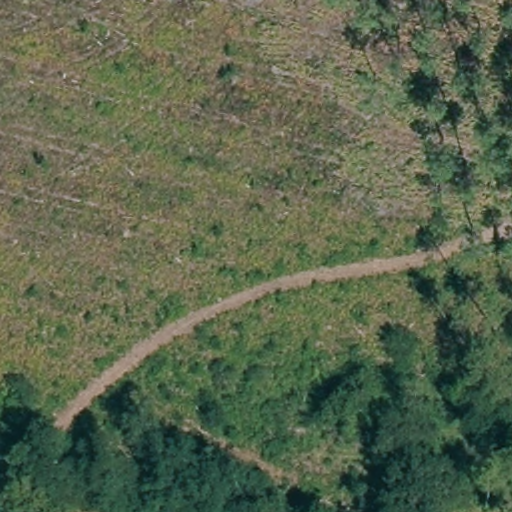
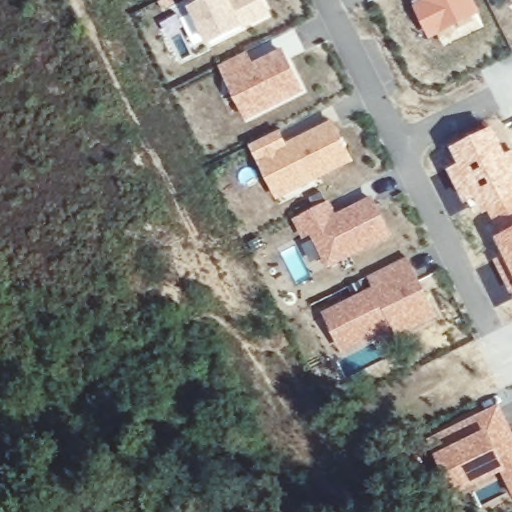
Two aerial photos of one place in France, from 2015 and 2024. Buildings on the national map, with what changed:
new [(245,27),(210,45),(191,6),(187,0),(265,0),(273,14),(245,27)]
new [(431,38),(415,6),(425,2),(424,0),(474,0),(480,13),(431,38)]
new [(254,61),(284,47),(305,92),(248,119),(220,65),(249,50),(254,61)]
new [(287,142),(335,119),(355,162),(279,201),(251,146),(281,131),(287,142)]
new [(459,164),(451,148),(494,126),(512,162),(512,216),(494,224),(486,213),(483,214),(474,200),(466,204),(448,170),(459,164)]
new [(337,213),(373,195),(392,236),(328,269),(312,235),(304,239),(293,219),(331,200),(337,213)]
new [(503,254),(495,236),(512,228),(512,290),(509,291),(492,260),(503,254)]
new [(438,316),(398,337),(393,327),(342,353),(323,311),(374,287),(369,278),(410,256),(438,316)]
new [(512,431),(512,484),(506,471),(457,495),(437,457),(428,440),(499,405),(512,431)]

